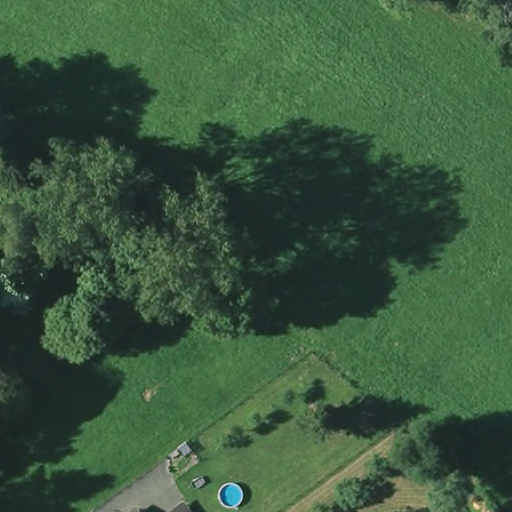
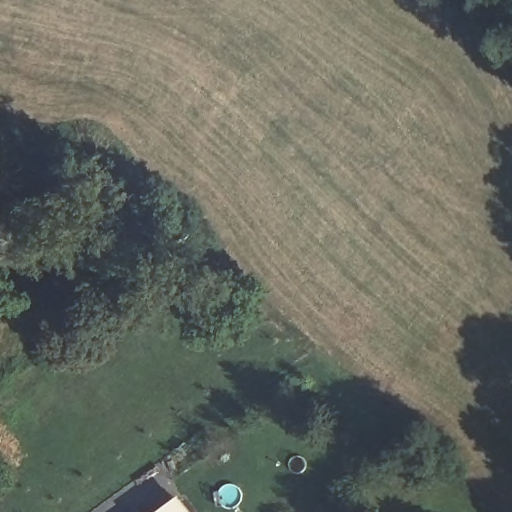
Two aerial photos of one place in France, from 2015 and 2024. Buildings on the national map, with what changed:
unchanged [(184,497),(196,512),(164,512),(184,497)]

